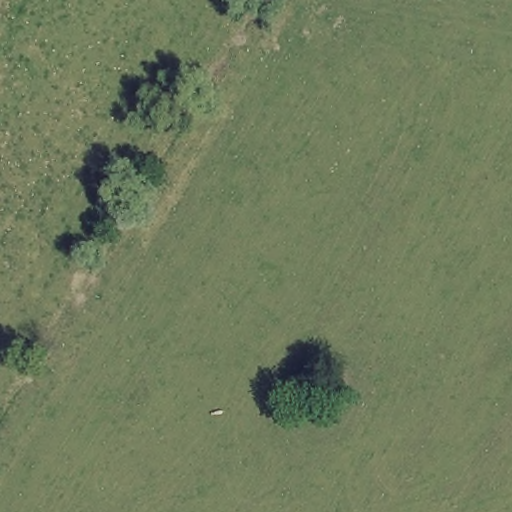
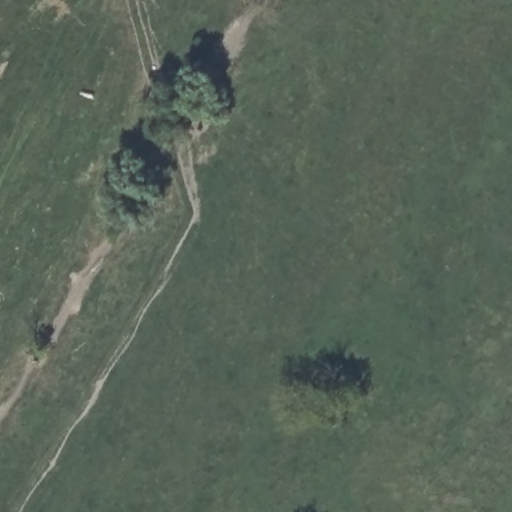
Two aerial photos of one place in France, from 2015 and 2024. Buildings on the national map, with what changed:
[]

